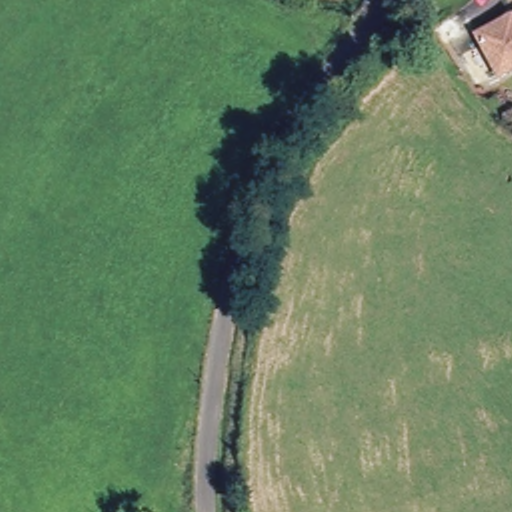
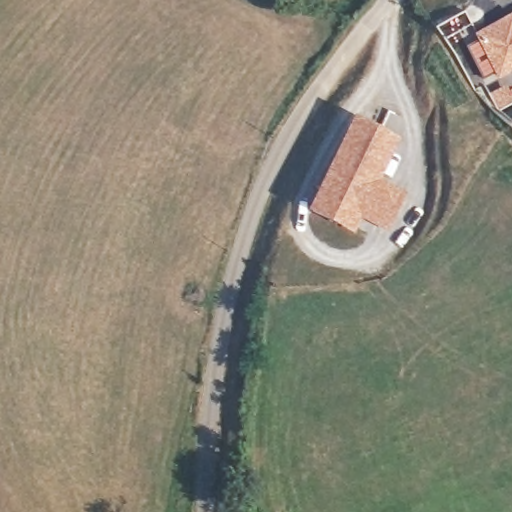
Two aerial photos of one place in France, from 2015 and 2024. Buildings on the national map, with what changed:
unchanged [(505,21),(507,26),(512,23),(512,68),(490,80),(468,41),(491,29),(505,21)]
new [(361,220),(353,234),(308,214),(354,117),(400,139),(380,180),(406,194),(388,233),(361,220)]

